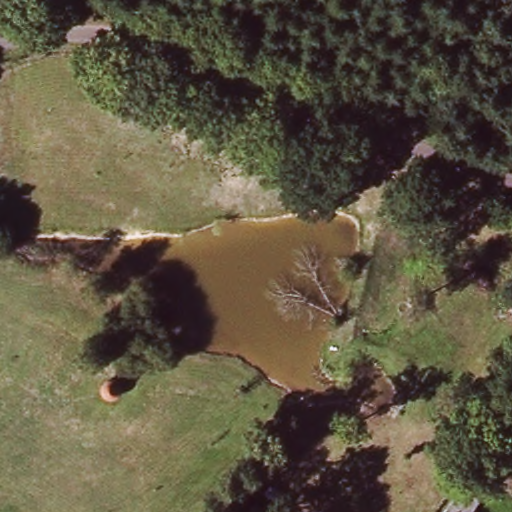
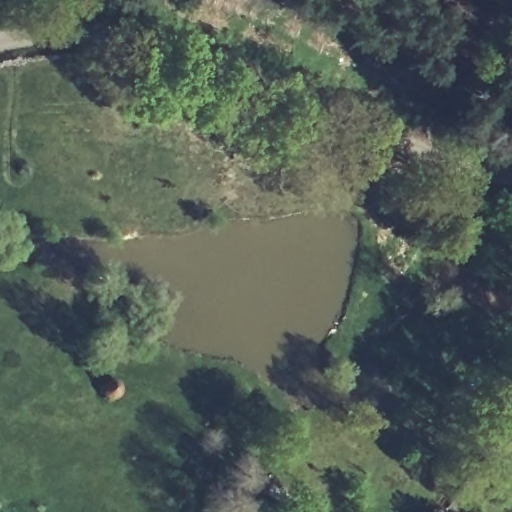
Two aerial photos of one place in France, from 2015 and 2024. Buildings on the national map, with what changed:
unchanged [(488,496),(477,512),(454,512),(452,510),(469,483),(488,496)]

